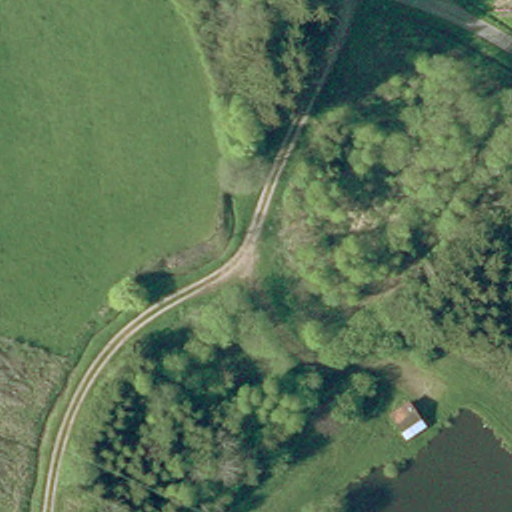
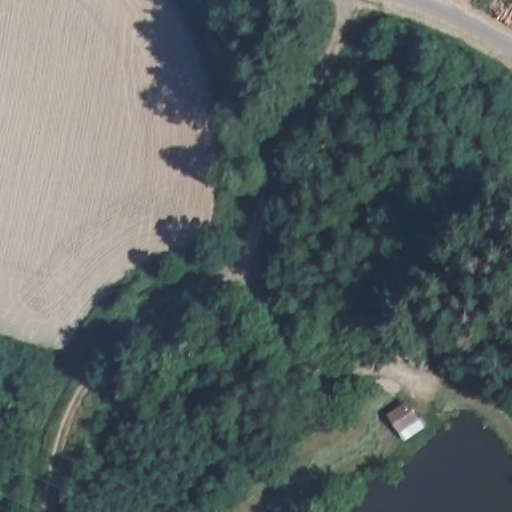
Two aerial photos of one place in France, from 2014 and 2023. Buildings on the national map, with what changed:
unchanged [(422,421),(403,433),(393,419),(412,407),(422,421)]

